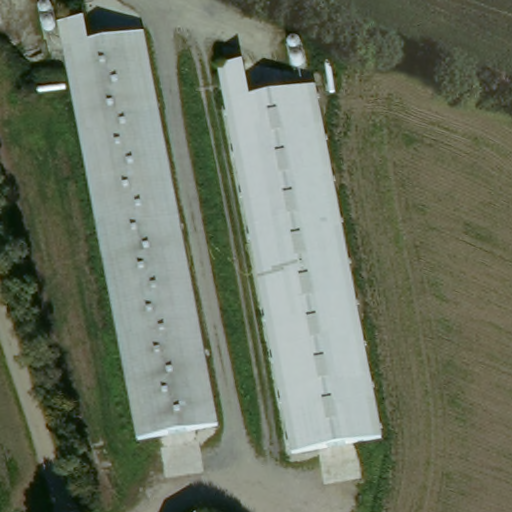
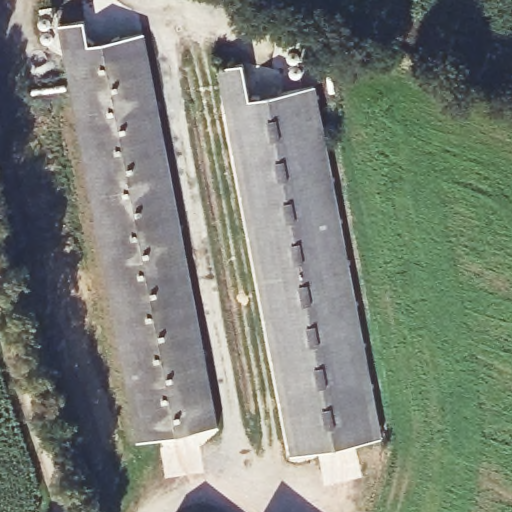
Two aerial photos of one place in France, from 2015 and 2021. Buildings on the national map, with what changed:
unchanged [(225,442),(145,457),(62,40),(85,35),(90,60),(144,47),(225,442)]
unchanged [(386,438),(297,456),(217,64),(240,59),(247,94),(312,80),(386,438)]

